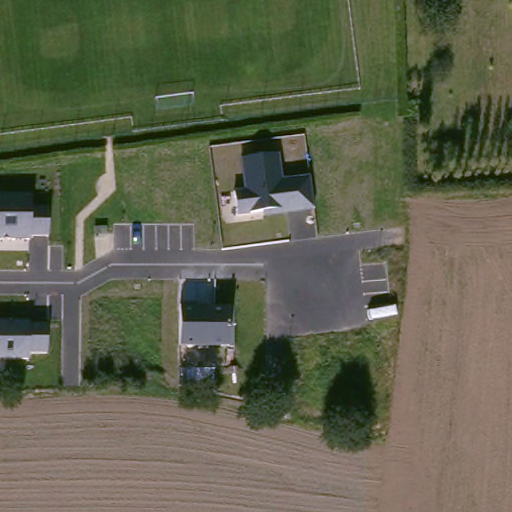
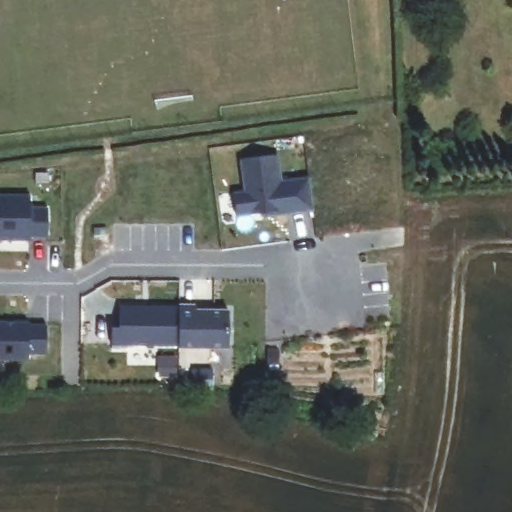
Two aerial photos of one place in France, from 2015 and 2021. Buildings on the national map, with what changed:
unchanged [(233,191),(244,189),(240,159),(278,154),(282,181),(308,177),(312,211),(262,217),(262,212),(237,216),(233,191)]
unchanged [(29,240),(0,240),(0,196),(31,197),(30,207),(49,208),(48,237),(29,235),(29,240)]
unchanged [(179,345),(180,304),(198,305),(199,308),(229,309),(229,347),(179,345)]
new [(179,345),(111,345),(112,327),(120,322),(120,306),(180,306),(179,345)]
unchanged [(29,360),(0,359),(0,321),(30,322),(30,325),(46,325),(45,353),(29,353),(29,360)]

